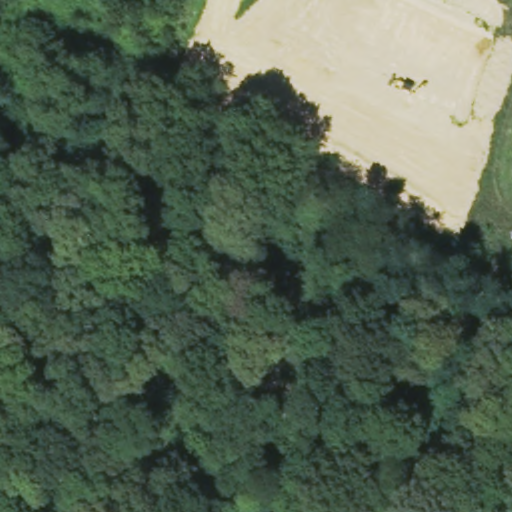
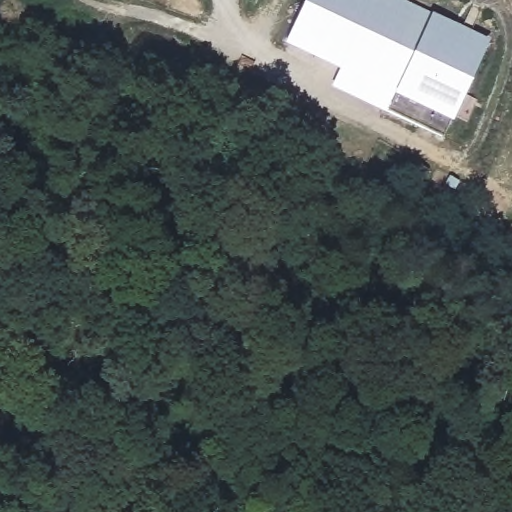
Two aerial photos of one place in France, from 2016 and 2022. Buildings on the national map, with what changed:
new [(305,0),(406,0),(432,12),(490,39),(442,138),(331,87),(339,69),(285,43),(305,0)]

